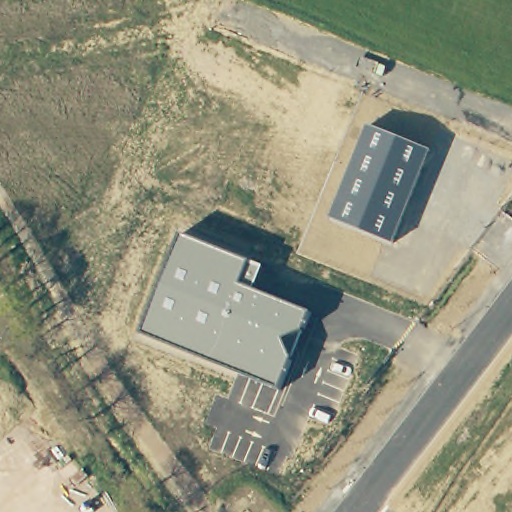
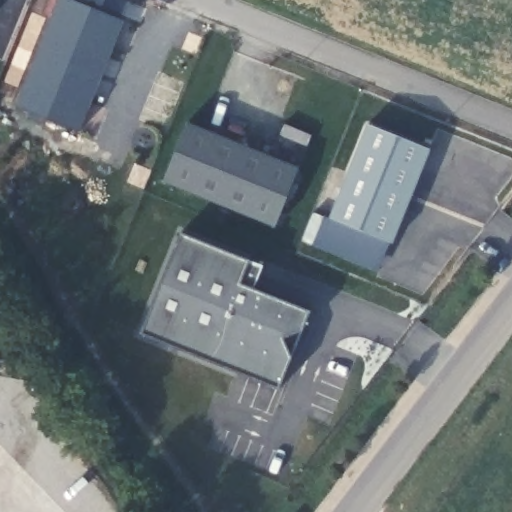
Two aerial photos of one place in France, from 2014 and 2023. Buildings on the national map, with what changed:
new [(79,132),(14,107),(57,0),(71,0),(123,20),(79,132)]
new [(299,169),(275,228),(161,182),(187,122),(299,169)]
unchanged [(392,242),(330,219),(367,125),(429,150),(392,242)]
unchanged [(280,388),(139,333),(180,235),(249,261),(262,267),(254,291),(307,311),(280,388)]

